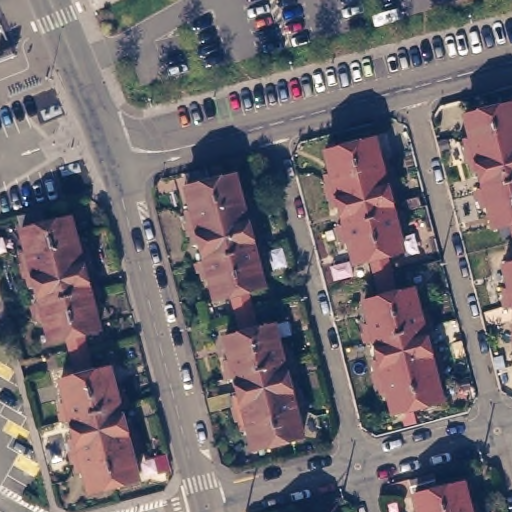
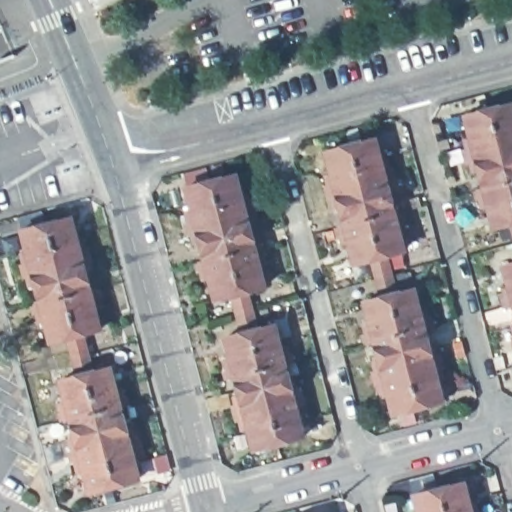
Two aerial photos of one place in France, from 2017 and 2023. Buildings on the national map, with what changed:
unchanged [(510,219),(494,222),(488,200),(481,202),(477,185),(483,182),(479,165),(472,167),(465,135),(471,133),(465,111),(512,99),(512,224),(510,219)]
unchanged [(421,311),(425,328),(419,329),(423,347),(430,346),(438,377),(432,381),(437,402),(388,414),(382,392),(376,393),(368,362),(375,360),(370,341),(363,342),(359,327),(365,325),(360,302),(376,297),(371,278),(366,260),(350,263),(345,245),(338,246),(333,226),(340,225),(335,206),(328,207),(320,176),(327,174),(321,152),(370,139),(375,162),(382,160),(390,192),(384,195),(388,213),(395,211),(400,228),(393,231),(398,252),(381,256),(386,275),(391,295),(408,290),(415,312),(421,311)]
unchanged [(286,342),(290,358),(285,360),(289,379),(296,377),(304,410),(298,411),(303,433),(254,446),(248,423),(242,425),(233,393),(240,392),(235,372),(228,374),(225,357),(231,355),(225,333),(242,330),(237,311),(232,292),(215,296),(210,273),(203,275),(198,258),(204,258),(200,237),(192,239),(185,207),(192,206),(186,184),(235,171),(240,193),(247,192),(255,223),(249,225),(254,244),(261,242),(265,259),(259,261),(264,283),(247,287),(252,307),(257,326),(274,321),(280,343),(286,342)]
unchanged [(122,384),(126,401),(120,402),(125,421),(131,420),(139,452),(132,453),(138,475),(90,488),(84,467),(77,467),(69,436),(75,434),(71,415),(65,417),(60,400),(66,397),(60,376),(77,372),(72,353),(66,335),(51,338),(45,316),(38,317),(30,287),(37,285),(31,264),(25,267),(21,250),(27,247),(22,226),(71,213),(76,235),(83,234),(91,265),(85,267),(90,287),(96,285),(100,301),(94,303),(100,325),(81,331),(87,349),(92,367),(110,363),(115,386),(122,384)]
unchanged [(507,302),(503,285),(510,282),(504,261),(512,259),(512,300),(507,302)]
unchanged [(420,495),(468,483),(474,506),(481,504),(483,512),(424,512),(420,495)]

